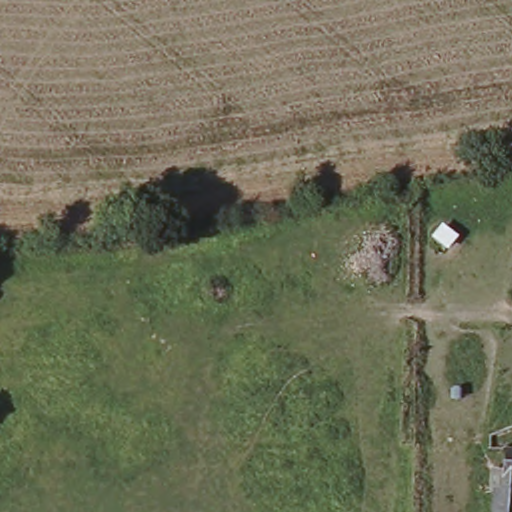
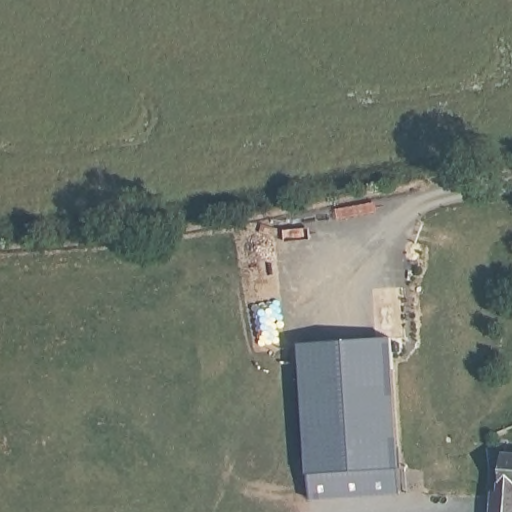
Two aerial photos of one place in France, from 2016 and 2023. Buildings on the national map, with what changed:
new [(394,339),(403,493),(311,499),(302,345),(394,339)]
unchanged [(502,491),(506,461),(496,460),(497,445),(504,445),(505,450),(512,451),(512,512),(492,512),(494,491),(502,491)]

